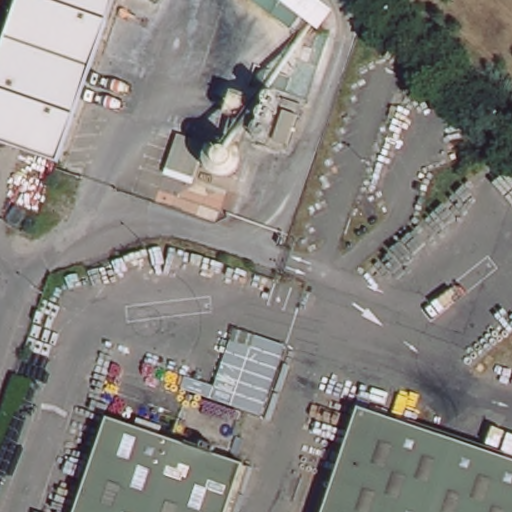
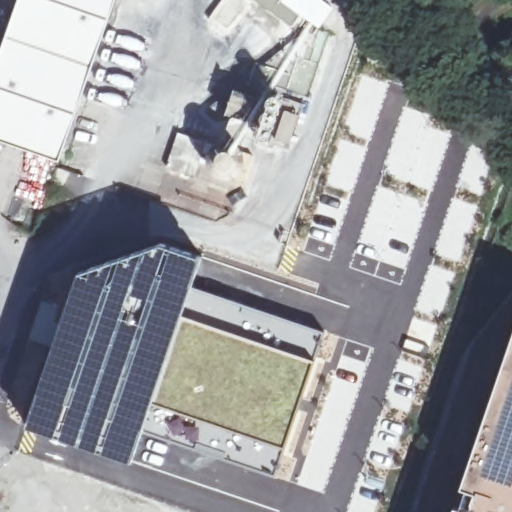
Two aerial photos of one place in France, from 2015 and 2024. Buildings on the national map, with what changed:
unchanged [(0,145),(0,73),(26,0),(121,0),(111,27),(62,166),(0,145)]
unchanged [(286,0),(324,0),(337,10),(323,27),(318,24),(313,20),(305,14),(286,0)]
unchanged [(234,85),(258,93),(250,118),(225,109),(234,85)]
unchanged [(265,100),(265,99),(265,98),(265,97),(265,96),(265,95),(265,94),(265,93),(266,92),(267,91),(267,90),(268,90),(270,89),(271,89),(272,89),(273,89),(274,89),(275,89),(275,90),(276,90),(277,91),(278,91),(278,92),(279,93),(280,94),(280,95),(280,96),(280,97),(280,98),(280,99),(279,99),(279,100),(278,100),(278,101),(277,102),(276,102),(276,103),(275,103),(274,104),(273,104),(272,104),(271,104),(270,104),(270,103),(269,103),(268,103),(267,102),(266,101),(265,100)]
unchanged [(282,104),(297,109),(288,138),(274,133),(282,104)]
unchanged [(271,107),(272,107),(273,108),(274,109),(275,109),(275,110),(275,111),(275,112),(275,113),(275,114),(275,115),(275,116),(274,117),(273,117),(273,118),(272,118),(272,119),(271,119),(270,119),(270,120),(269,120),(268,120),(267,120),(266,120),(266,119),(265,119),(264,118),(263,118),(262,117),(262,116),(261,115),(261,114),(261,113),(261,112),(261,111),(262,110),(262,109),(263,108),(264,107),(265,107),(265,106),(266,106),(267,106),(268,106),(269,106),(270,106),(271,107)]
unchanged [(257,130),(256,129),(256,128),(256,127),(257,127),(257,126),(257,125),(258,124),(259,123),(260,123),(260,122),(261,122),(262,122),(263,122),(264,122),(265,122),(266,122),(266,123),(267,123),(268,124),(269,125),(270,126),(270,127),(270,128),(270,129),(270,130),(270,131),(269,131),(269,132),(268,132),(268,133),(267,133),(267,134),(266,134),(265,135),(264,135),(263,135),(262,135),(261,135),(260,134),(259,134),(258,133),(258,132),(257,132),(257,131),(257,130)]
unchanged [(177,128),(203,137),(193,172),(166,162),(177,128)]
unchanged [(237,140),(238,141),(239,142),(240,144),(241,145),(241,146),(242,148),(242,149),(243,150),(243,152),(243,153),(243,155),(243,156),(243,158),(243,159),(242,161),(242,162),(241,163),(240,165),(240,166),(239,167),(238,168),(235,170),(233,171),(232,172),(231,173),(230,173),(228,173),(226,174),(225,174),(223,174),(222,174),(220,173),(219,173),(218,172),(216,172),(215,171),(214,170),(212,170),(211,169),(210,168),(210,166),(208,165),(208,164),(207,163),(206,161),(206,160),(206,158),(205,157),(205,155),(205,154),(205,153),(206,151),(206,150),(206,149),(207,147),(207,146),(208,144),(210,143),(210,142),(211,141),(212,140),(213,139),(215,138),(216,138),(217,137),(219,136),(220,136),(222,136),(223,136),(225,136),(226,136),(228,136),(229,136),(230,137),(232,137),(233,138),(235,139),(236,139),(237,140)]
new [(35,386),(50,344),(60,310),(76,270),(115,255),(158,242),(167,243),(202,255),(193,285),(185,312),(171,347),(155,403),(131,463),(23,425),(35,386)]
new [(193,285),(323,330),(314,358),(235,328),(185,312),(193,285)]
new [(512,292),(512,342),(491,335),(473,386),(462,383),(431,475),(476,491),(469,512),(468,512),(423,497),(418,512),(415,512),(472,342),(512,292)]
new [(171,347),(185,312),(235,328),(314,358),(297,412),(283,448),(155,403),(171,347)]
demolished [(235,341),(255,348),(260,336),(289,346),(285,358),(265,415),(185,387),(205,330),(209,320),(238,330),(235,341)]
new [(431,475),(462,383),(473,386),(491,335),(512,342),(512,512),(469,512),(476,491),(431,475)]
demolished [(512,462),(512,512),(327,512),(362,409),(512,462)]
demolished [(250,467),(235,512),(82,512),(115,419),(179,442),(233,461),(250,467)]
new [(468,512),(418,512),(423,497),(468,512)]

